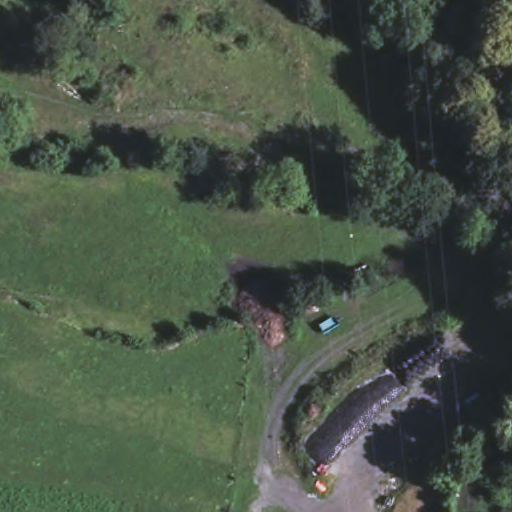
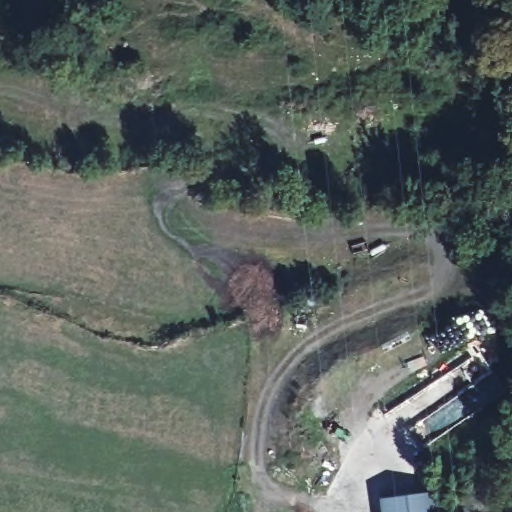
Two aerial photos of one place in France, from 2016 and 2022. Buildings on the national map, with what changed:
new [(430,493),(432,512),(382,512),(381,500),(430,493)]

